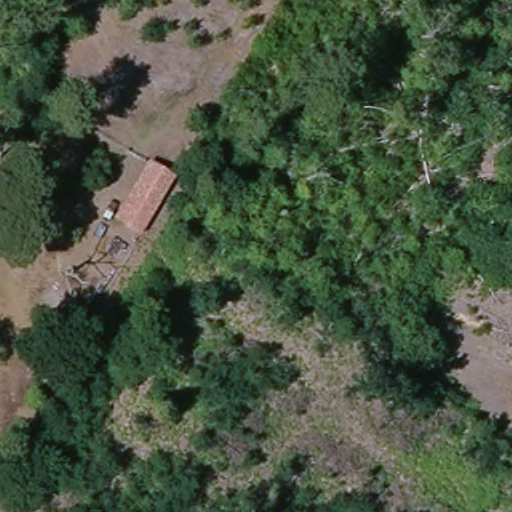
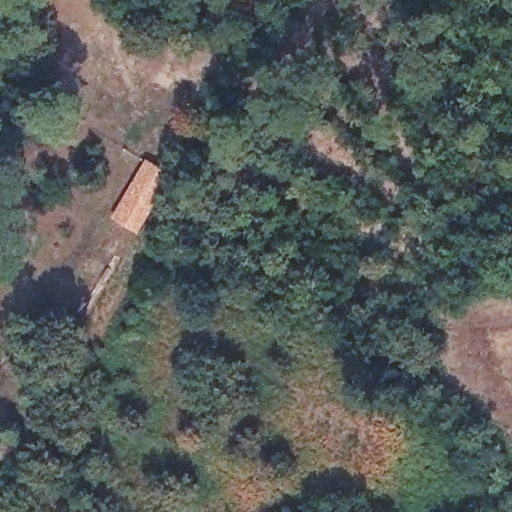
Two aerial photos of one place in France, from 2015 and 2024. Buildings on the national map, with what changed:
unchanged [(144,232),(119,220),(138,181),(147,164),(173,176),(164,195),(161,201),(144,232)]

